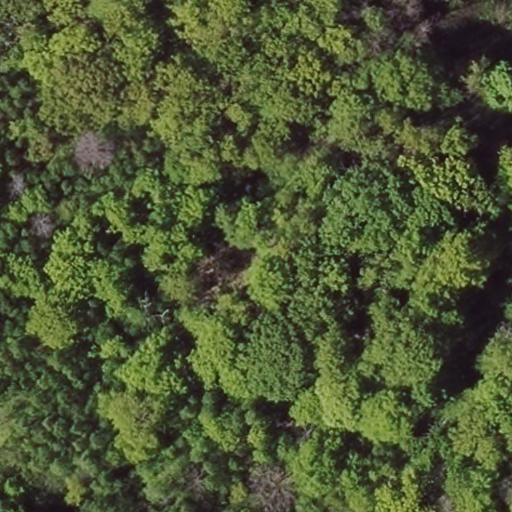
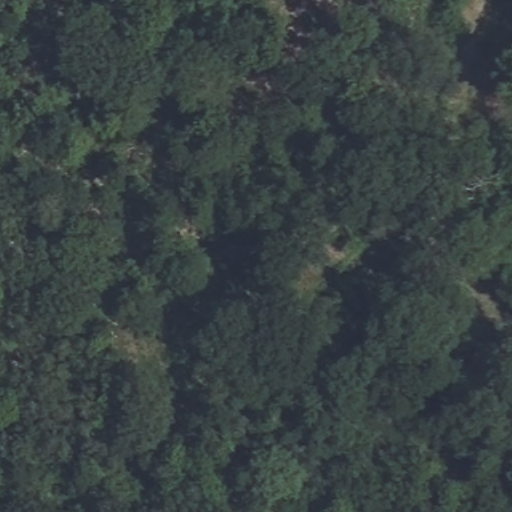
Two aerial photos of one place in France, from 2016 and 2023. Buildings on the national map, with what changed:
unchanged [(478,376),(462,369),(474,341),(490,349),(478,376)]

